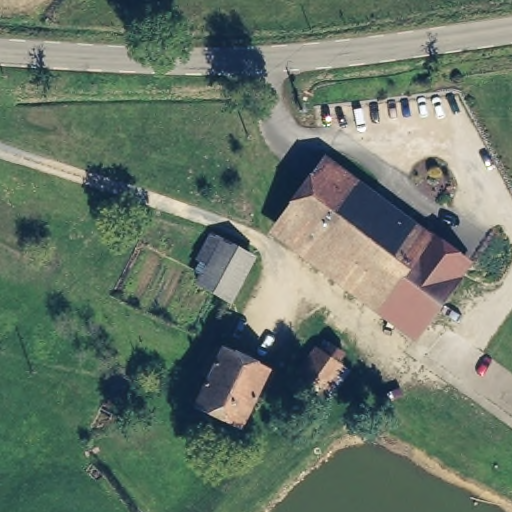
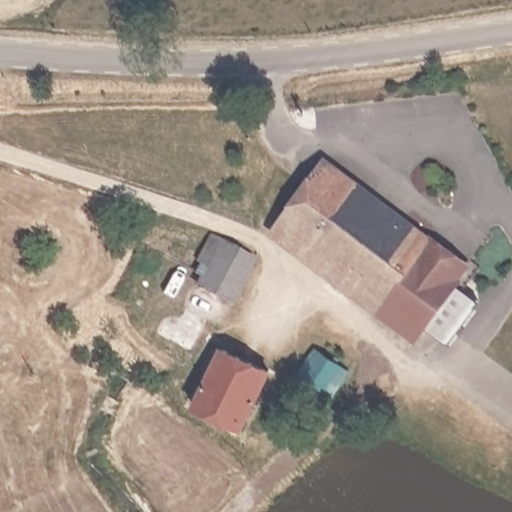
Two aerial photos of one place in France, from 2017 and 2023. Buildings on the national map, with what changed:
unchanged [(322,157),(470,271),(457,292),(425,337),(422,336),(270,223),(322,157)]
unchanged [(232,238),(260,250),(253,267),(239,298),(210,286),(216,272),(224,254),(232,238)]
unchanged [(352,373),(315,419),(287,393),(315,350),(352,373)]
unchanged [(223,356),(225,352),(272,375),(242,436),(197,412),(210,385),(205,382),(219,354),(223,356)]

